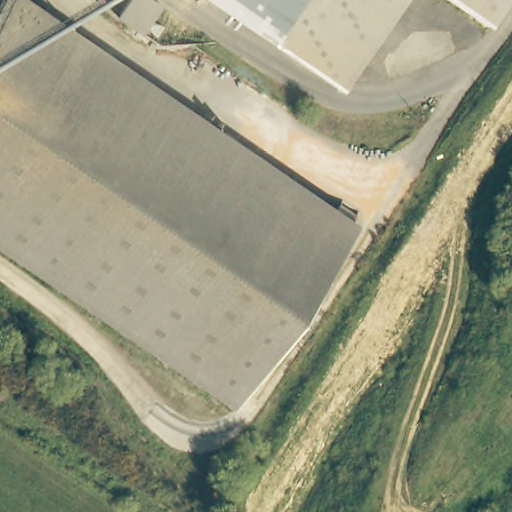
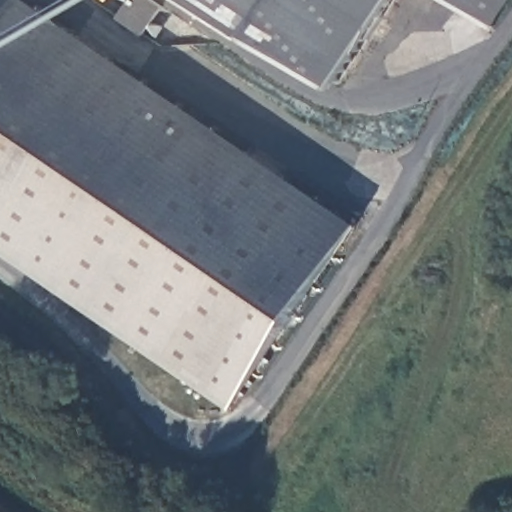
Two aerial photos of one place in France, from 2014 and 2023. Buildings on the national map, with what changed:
unchanged [(0,195),(0,0),(11,0),(351,227),(256,368),(0,195)]
unchanged [(343,87),(211,0),(402,0),(343,87)]
unchanged [(490,28),(448,0),(508,0),(490,28)]
unchanged [(235,400),(0,242),(0,195),(256,368),(235,400)]

